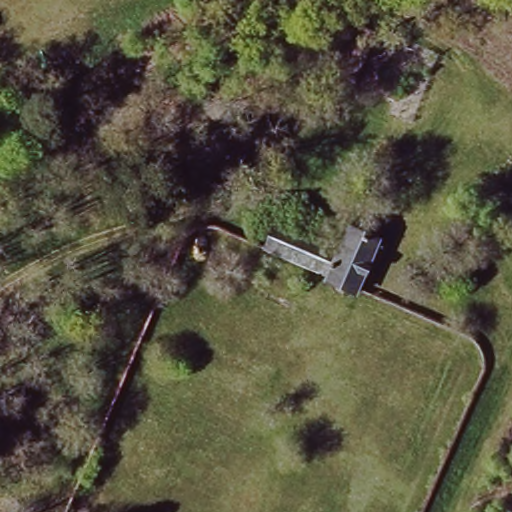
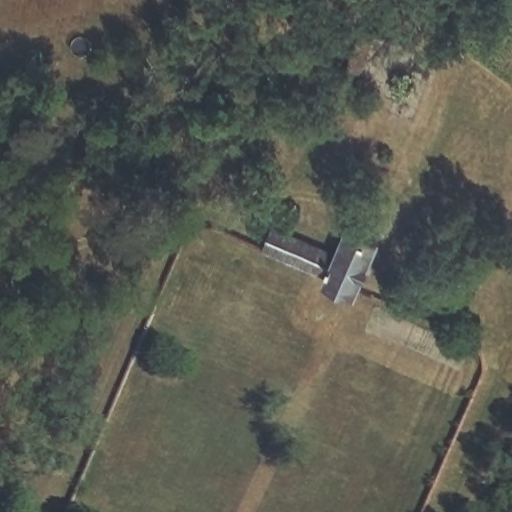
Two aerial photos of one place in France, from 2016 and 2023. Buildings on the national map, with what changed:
unchanged [(257,249),(270,223),(330,244),(339,220),(381,240),(361,290),(257,249)]

